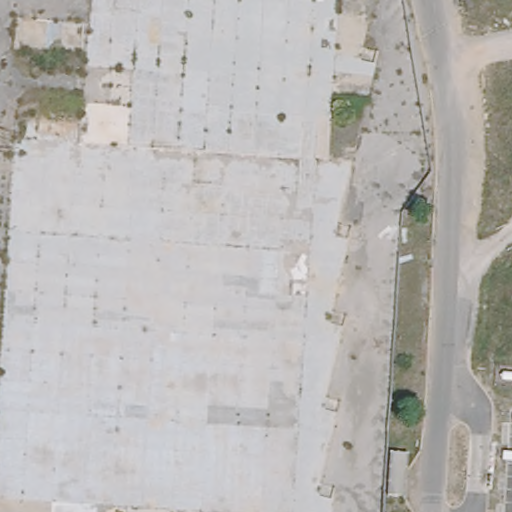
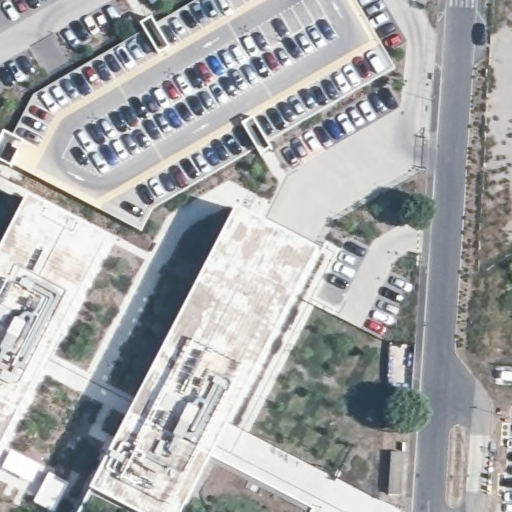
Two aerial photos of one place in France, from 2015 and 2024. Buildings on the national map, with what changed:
new [(0,460),(0,260),(32,200),(114,242),(0,460)]
new [(213,458),(316,511),(315,512),(82,512),(93,491),(239,209),(322,252),(213,458)]
new [(405,454),(402,495),(390,494),(393,453),(405,454)]

